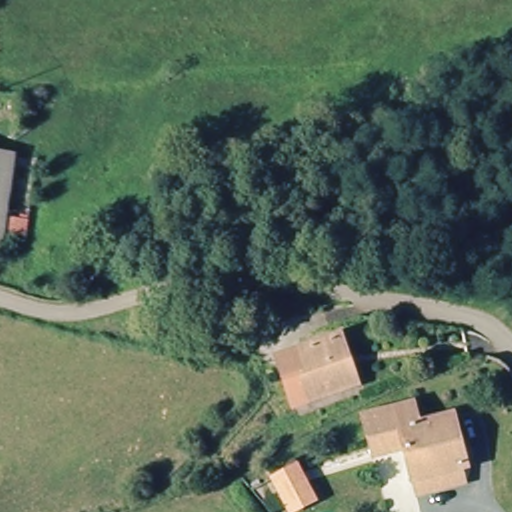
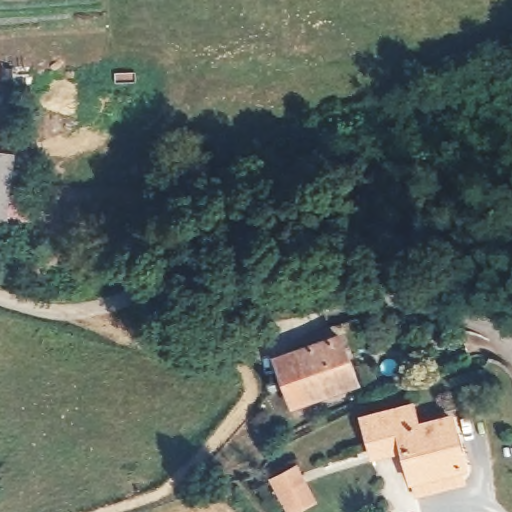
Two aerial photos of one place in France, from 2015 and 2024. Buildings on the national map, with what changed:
unchanged [(0,232),(0,154),(19,158),(3,233),(0,232)]
unchanged [(281,364),(340,341),(359,389),(323,403),(298,412),(292,395),(288,383),(281,364)]
unchanged [(422,486),(421,472),(419,444),(382,448),(378,404),(382,403),(428,399),(431,422),(467,417),(472,468),(465,469),(466,483),(422,486)]
unchanged [(318,501),(297,512),(287,512),(267,477),(297,461),(318,501)]

